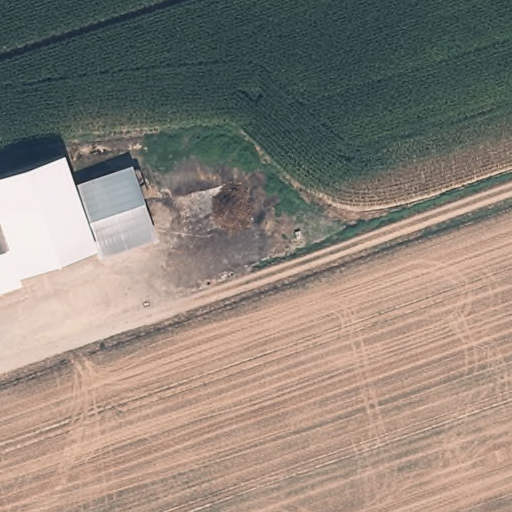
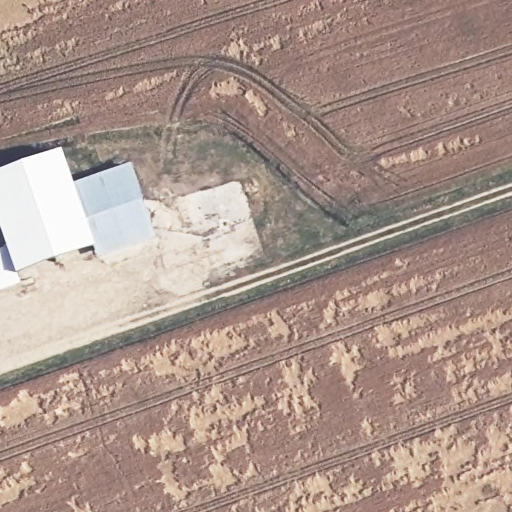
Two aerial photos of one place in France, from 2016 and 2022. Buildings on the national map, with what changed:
unchanged [(0,220),(0,184),(64,162),(76,195),(0,222),(0,220)]
unchanged [(154,236),(0,288),(0,222),(76,195),(133,175),(154,236)]

